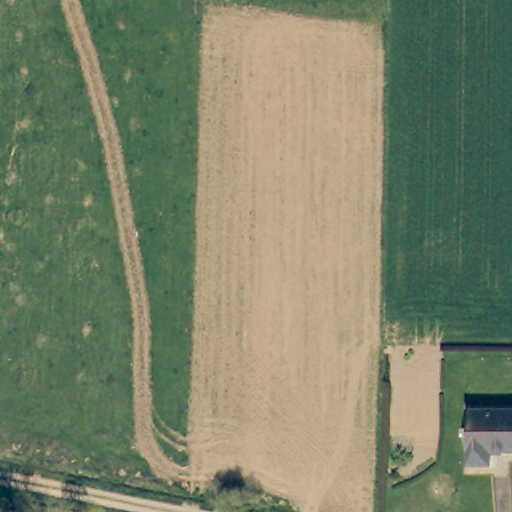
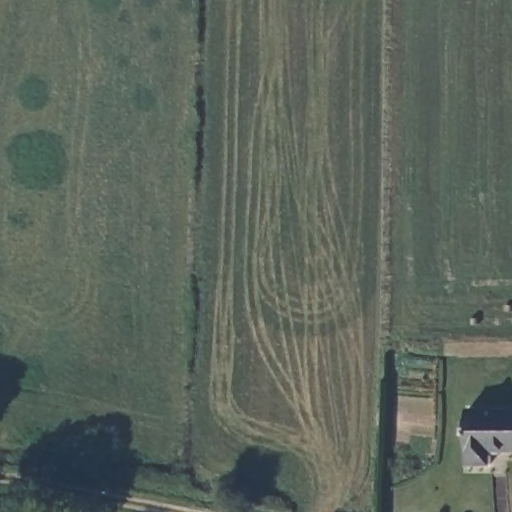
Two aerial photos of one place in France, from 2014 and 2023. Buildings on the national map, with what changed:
unchanged [(469,408),(512,410),(512,450),(493,450),(492,463),(468,462),(469,408)]

